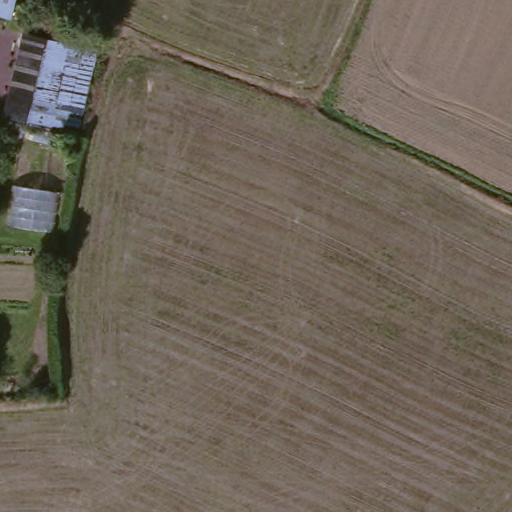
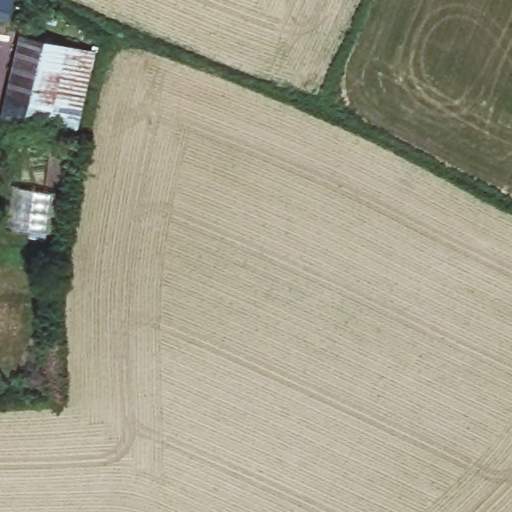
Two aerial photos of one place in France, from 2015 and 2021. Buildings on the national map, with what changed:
unchanged [(0,13),(0,0),(9,0),(6,14),(0,13)]
unchanged [(2,112),(8,86),(9,82),(23,25),(97,42),(83,99),(82,102),(75,129),(2,112)]
unchanged [(54,232),(11,234),(12,182),(57,190),(54,232)]

